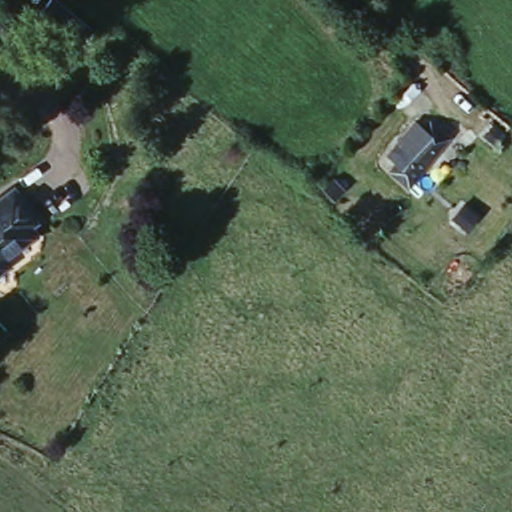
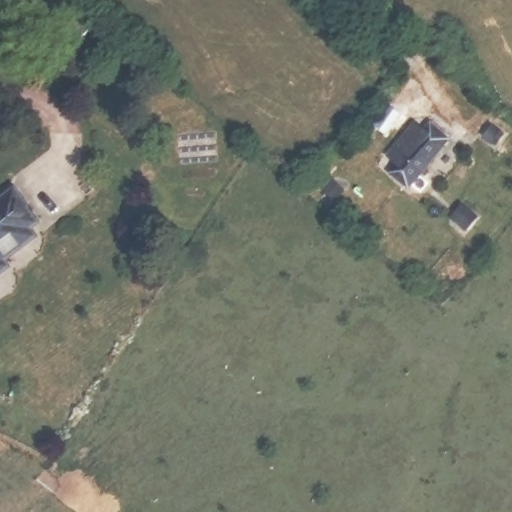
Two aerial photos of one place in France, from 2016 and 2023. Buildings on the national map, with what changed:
unchanged [(427,128),(432,124),(451,140),(409,186),(390,170),(397,162),(387,152),(417,120),(427,128)]
unchanged [(17,204),(14,206),(26,220),(20,225),(26,234),(19,239),(0,253),(0,190),(4,187),(17,204)]
unchanged [(481,221),(471,230),(462,220),(472,211),(481,221)]

